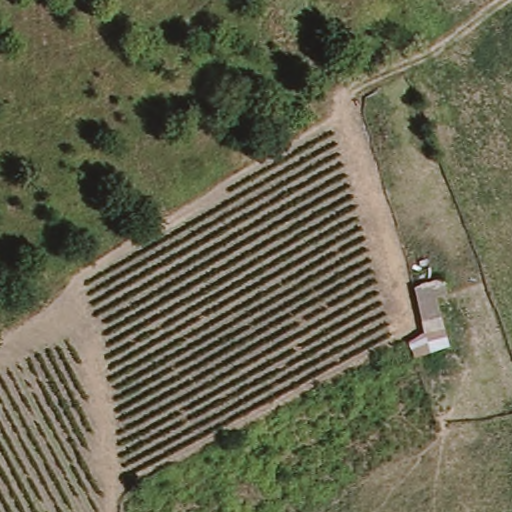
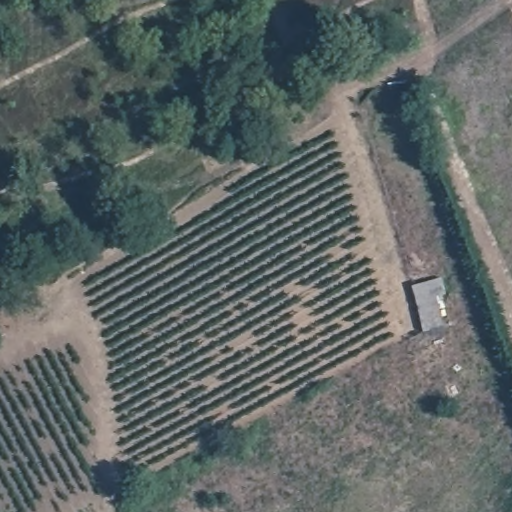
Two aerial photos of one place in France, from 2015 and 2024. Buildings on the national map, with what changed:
unchanged [(445,276),(447,298),(438,301),(445,329),(425,334),(412,289),(445,276)]

